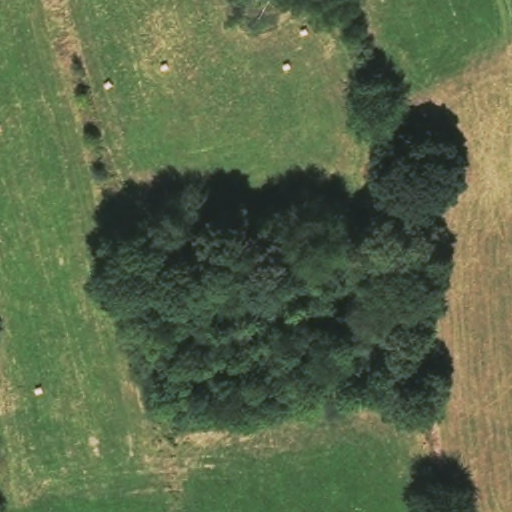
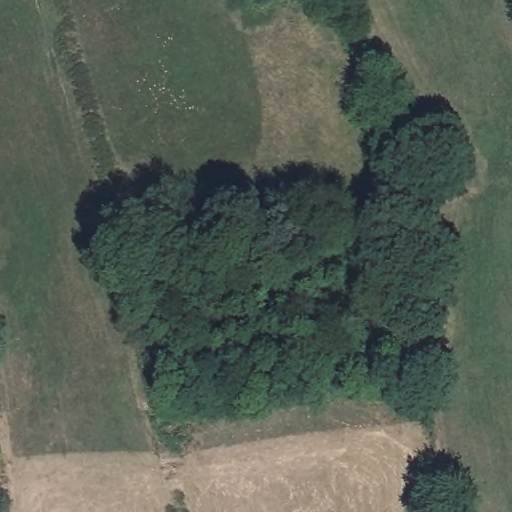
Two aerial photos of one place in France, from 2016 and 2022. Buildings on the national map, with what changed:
[]

